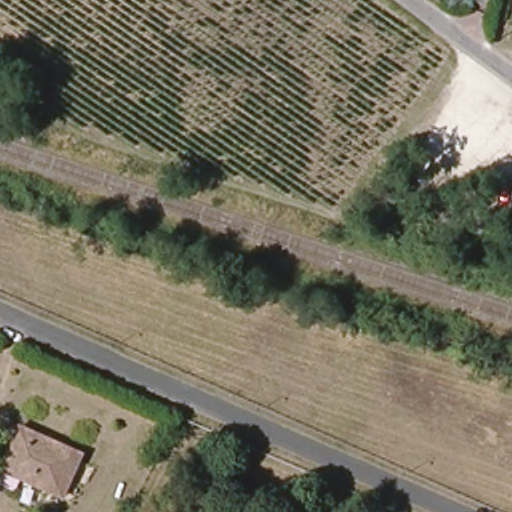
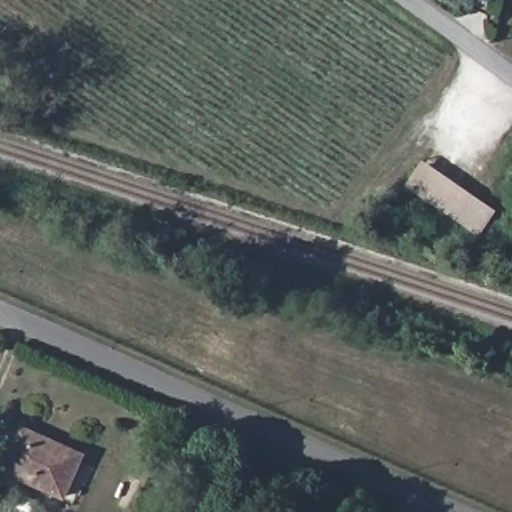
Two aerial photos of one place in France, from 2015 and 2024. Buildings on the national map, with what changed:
new [(481,237),(405,185),(422,160),(499,211),(481,237)]
unchanged [(6,470),(24,429),(84,454),(66,496),(6,470)]

